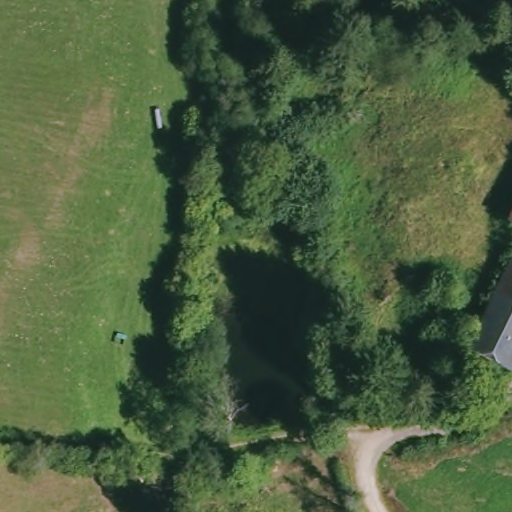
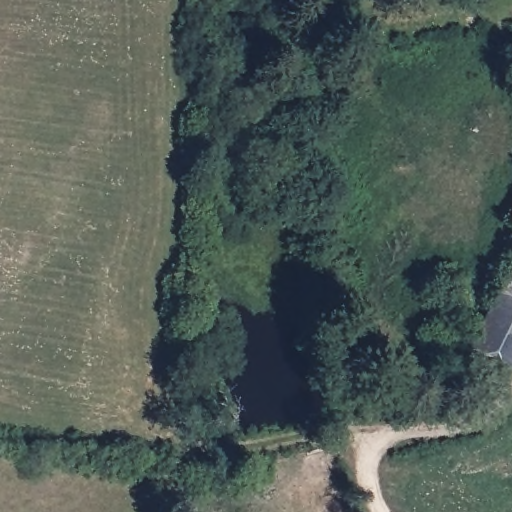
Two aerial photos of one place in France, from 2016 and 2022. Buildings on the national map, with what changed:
unchanged [(512,275),(512,370),(475,352),(512,275)]

